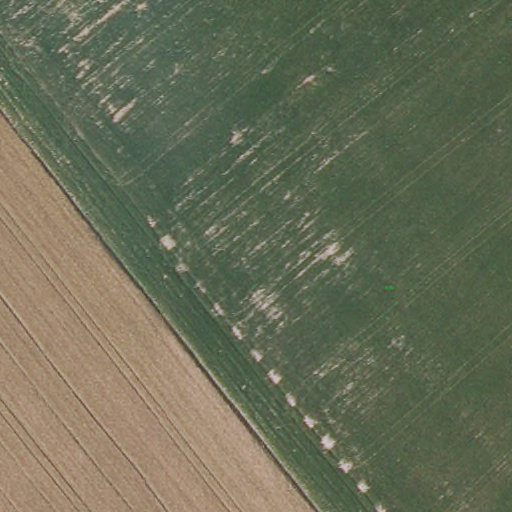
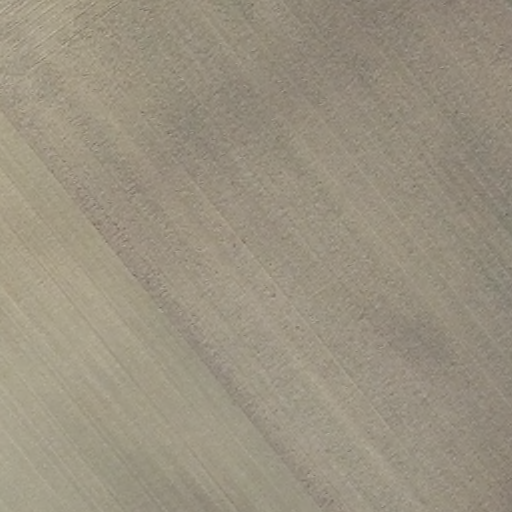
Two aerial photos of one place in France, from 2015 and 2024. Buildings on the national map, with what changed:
[]

